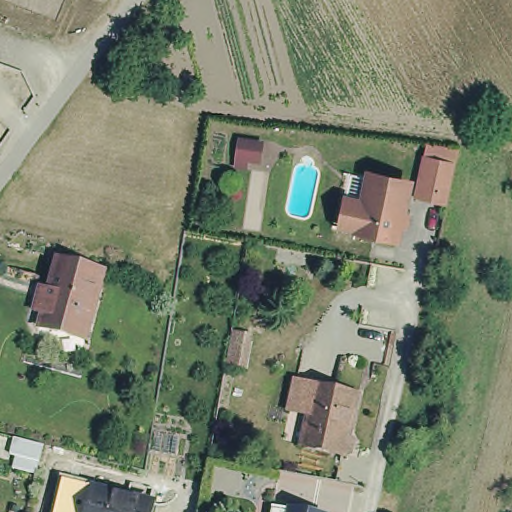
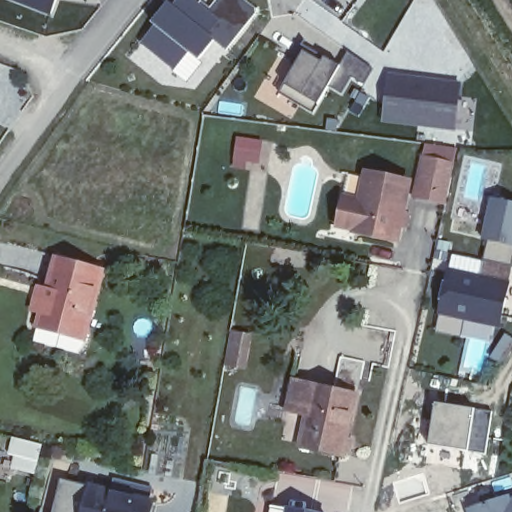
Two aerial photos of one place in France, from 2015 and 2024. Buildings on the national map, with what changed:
unchanged [(51,12),(19,0),(55,0),(51,12)]
new [(255,11),(225,48),(213,39),(197,58),(187,50),(174,67),(140,40),(154,23),(151,20),(166,1),(170,5),(174,0),(193,0),(208,12),(217,0),(246,0),(254,6),(255,11)]
new [(360,1),(358,0),(360,0),(360,1)]
new [(365,83),(353,76),(343,94),(329,86),(314,111),(282,92),(307,46),(341,66),(348,53),(373,69),(365,83)]
new [(416,123),(382,119),(387,74),(422,79),(433,80),(459,83),(454,123),(453,128),(416,123)]
unchanged [(233,166),(235,158),(238,139),(257,142),(253,161),(248,160),(246,168),(233,166)]
unchanged [(449,220),(418,213),(427,171),(458,178),(449,220)]
unchanged [(410,240),(404,239),(402,250),(358,241),(358,238),(350,236),(337,234),(348,182),(370,187),(412,196),(408,216),(414,217),(410,240)]
new [(489,241),(482,240),(492,197),(512,201),(512,267),(484,261),(489,241)]
unchanged [(40,334),(45,321),(49,309),(41,306),(49,279),(58,281),(66,251),(113,264),(93,333),(88,349),(40,334)]
new [(437,317),(447,268),(481,274),(484,261),(512,267),(512,272),(501,329),(437,317)]
unchanged [(221,364),(227,331),(230,331),(246,335),(239,368),(224,365),(221,364)]
unchanged [(350,451),(343,449),(302,439),(315,381),(357,390),(347,434),(354,436),(350,451)]
new [(428,445),(435,402),(459,406),(492,411),(491,414),(485,454),(428,445)]
unchanged [(11,466),(14,456),(15,454),(8,452),(12,436),(41,443),(37,460),(37,462),(34,472),(11,466)]
unchanged [(88,476),(104,481),(154,494),(164,497),(160,512),(78,512),(80,505),(88,476)]
new [(509,501),(512,499),(512,512),(469,512),(468,509),(508,496),(509,501)]
unchanged [(292,504),(290,512),(273,512),(276,501),(292,504)]
unchanged [(331,511),(331,512),(290,512),(292,504),(331,511)]

